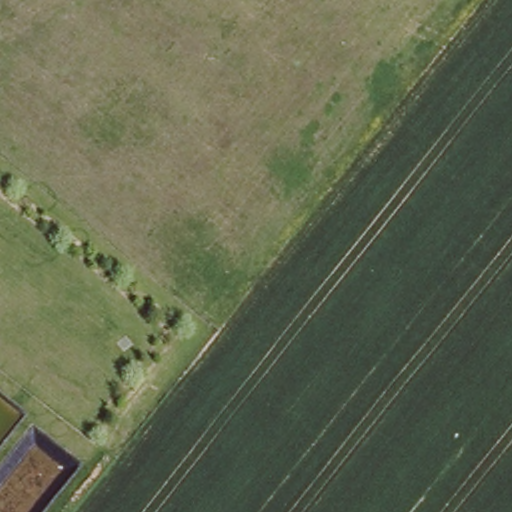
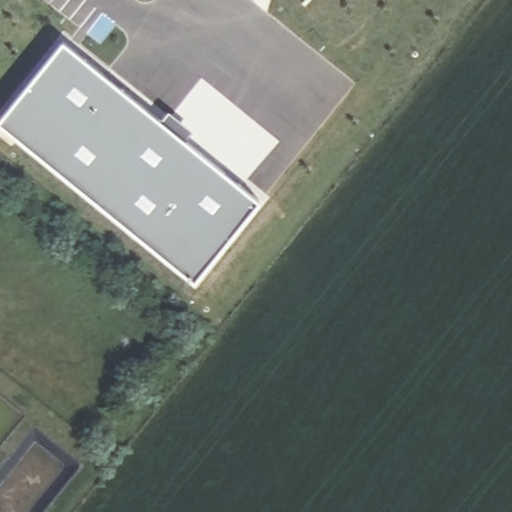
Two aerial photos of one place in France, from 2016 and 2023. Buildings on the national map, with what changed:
new [(257,201),(194,280),(0,123),(0,117),(63,40),(257,201)]

